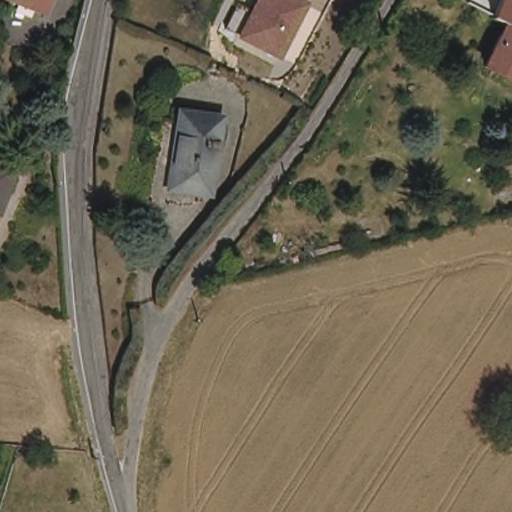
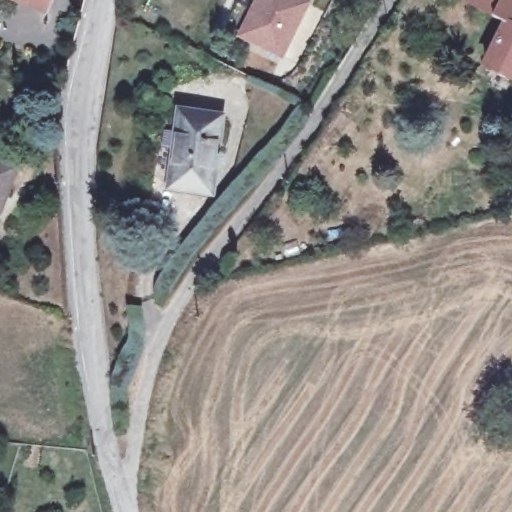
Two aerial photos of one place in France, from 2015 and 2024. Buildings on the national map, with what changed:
unchanged [(28,0),(52,0),(50,6),(28,0)]
unchanged [(283,60),(238,38),(258,0),(307,0),(311,3),(283,60)]
unchanged [(496,0),(512,0),(512,20),(502,15),(491,10),(496,0)]
unchanged [(496,66),(512,30),(512,73),(496,66)]
unchanged [(442,85),(438,94),(430,90),(433,81),(442,85)]
unchanged [(212,195),(170,189),(183,111),(223,118),(212,195)]
unchanged [(7,189),(0,187),(0,163),(15,169),(7,189)]

